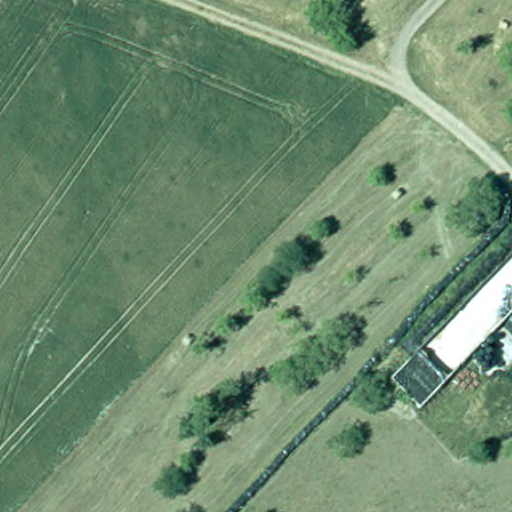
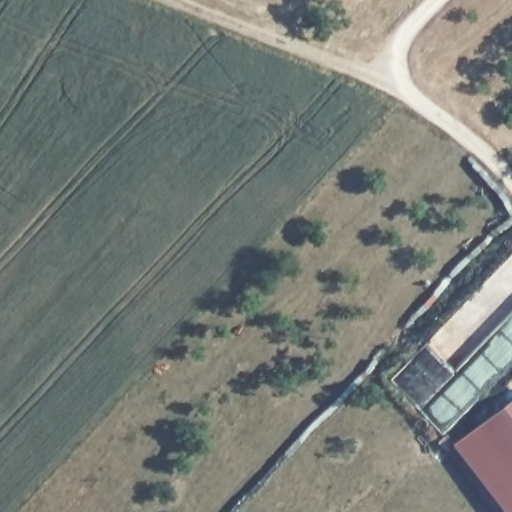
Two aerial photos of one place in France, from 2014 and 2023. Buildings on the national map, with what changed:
new [(512,512),(511,512),(455,442),(512,398),(512,512)]
unchanged [(200,422),(218,403),(226,411),(230,415),(213,434),(208,430),(200,422)]
new [(511,512),(498,512),(448,448),(455,442),(511,512)]

